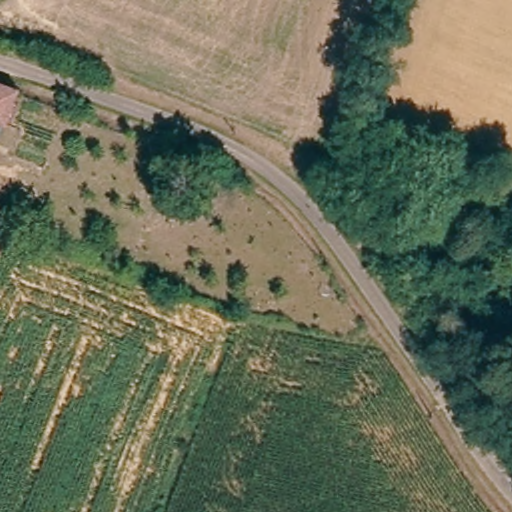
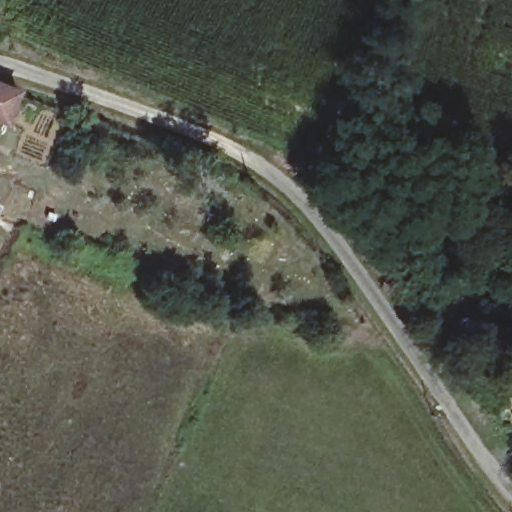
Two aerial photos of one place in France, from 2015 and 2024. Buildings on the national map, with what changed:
unchanged [(12,87),(0,121),(0,83),(12,87)]

